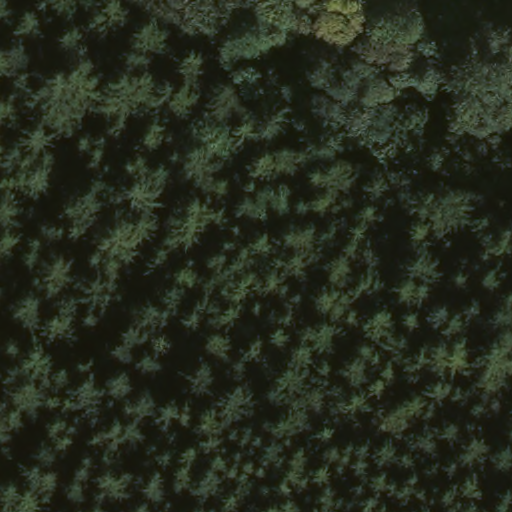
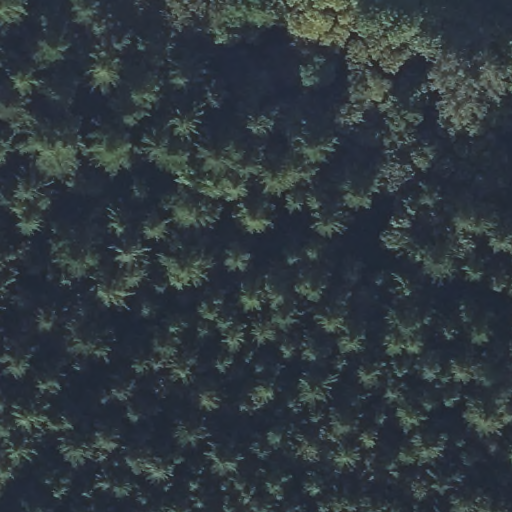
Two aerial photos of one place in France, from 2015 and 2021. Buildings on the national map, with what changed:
[]

